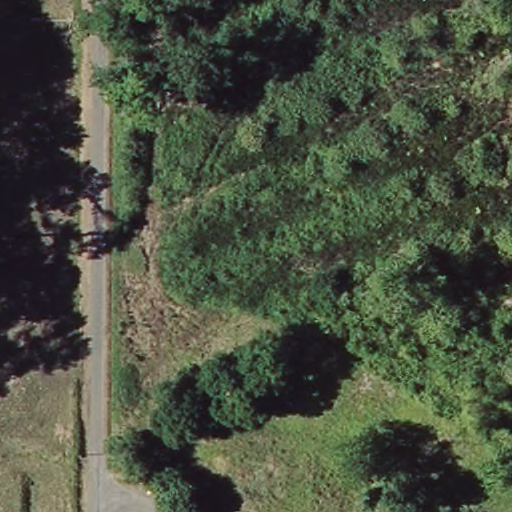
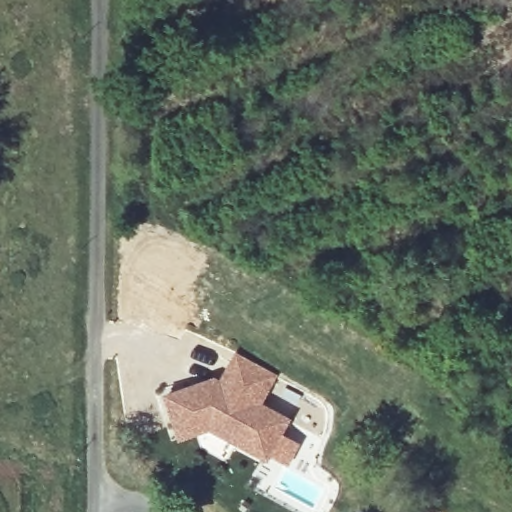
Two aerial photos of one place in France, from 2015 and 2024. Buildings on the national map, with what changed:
new [(163,394),(214,377),(220,380),(235,353),(277,375),(262,404),(291,419),(268,460),(211,430),(180,440),(163,394)]

